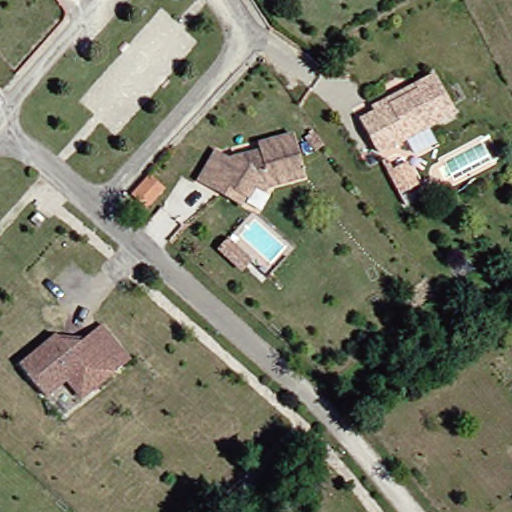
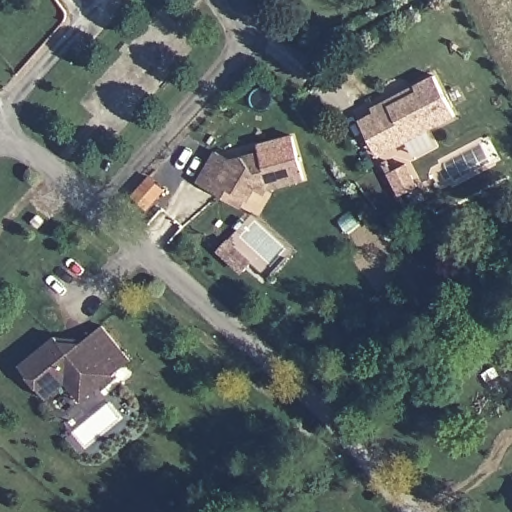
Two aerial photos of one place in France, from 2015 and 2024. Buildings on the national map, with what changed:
unchanged [(372,102),(386,95),(423,76),(436,69),(456,106),(392,141),(381,147),(365,114),(376,108),(372,102)]
unchanged [(224,193),(199,180),(215,148),(234,157),(263,148),(261,141),(297,130),(315,175),(278,184),(274,192),(260,184),(252,196),(248,205),(224,193)]
unchanged [(423,183),(405,192),(392,169),(411,160),(423,183)]
unchanged [(257,256),(249,266),(224,244),(231,234),(257,256)]
unchanged [(100,326),(127,365),(82,395),(38,343),(47,336),(76,342),(100,326)]
unchanged [(69,405),(54,385),(41,394),(16,359),(38,343),(82,395),(69,405)]

